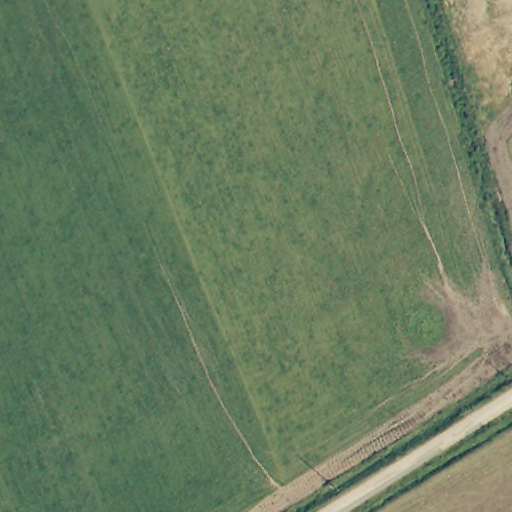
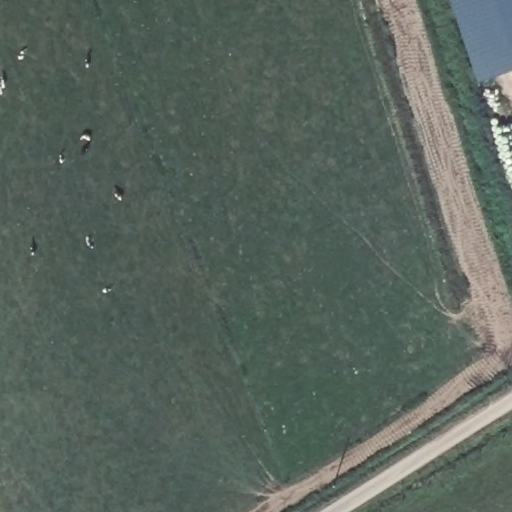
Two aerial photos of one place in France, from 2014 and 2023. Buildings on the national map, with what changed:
new [(451,0),(512,0),(512,71),(478,82),(451,0)]

